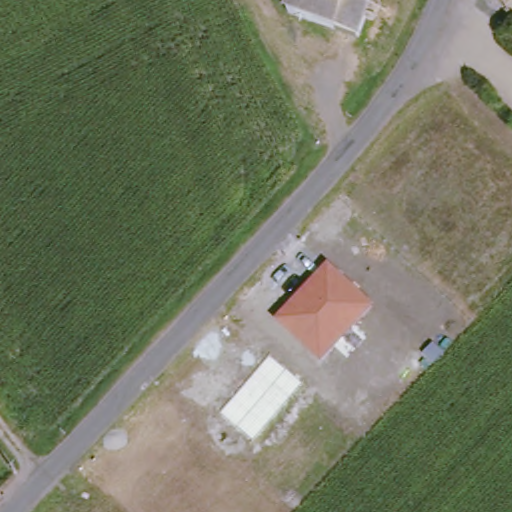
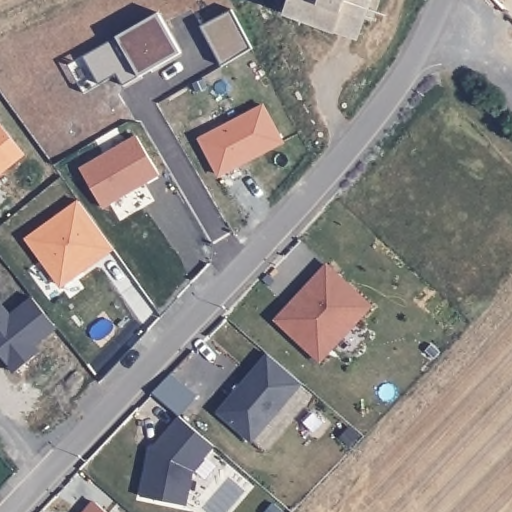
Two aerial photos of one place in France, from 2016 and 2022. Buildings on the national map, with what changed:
unchanged [(382,1),(374,22),(367,20),(358,39),(289,13),(293,0),(379,0),(382,1)]
new [(229,10),(250,50),(219,68),(196,29),(229,10)]
new [(158,14),(181,53),(123,87),(116,75),(99,85),(83,94),(67,66),(139,25),(158,14)]
new [(259,103),(280,139),(218,175),(197,140),(259,103)]
new [(25,155),(0,174),(0,123),(25,155)]
new [(136,136),(159,174),(102,208),(80,169),(136,136)]
new [(79,201),(113,248),(100,257),(97,254),(87,262),(89,265),(63,284),(28,237),(79,201)]
unchanged [(373,306),(320,362),(276,320),(328,264),(373,306)]
new [(252,443),(218,413),(269,354),(303,385),(252,443)]
new [(141,496),(151,449),(178,417),(214,447),(193,472),(187,507),(141,496)]
new [(107,512),(84,512),(94,501),(107,512)]
new [(286,512),(269,512),(276,504),(286,512)]

